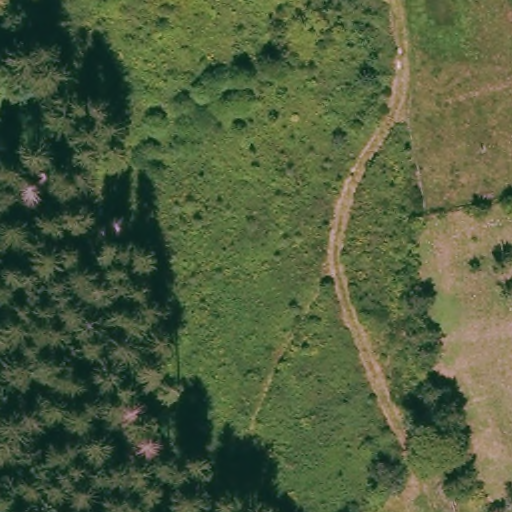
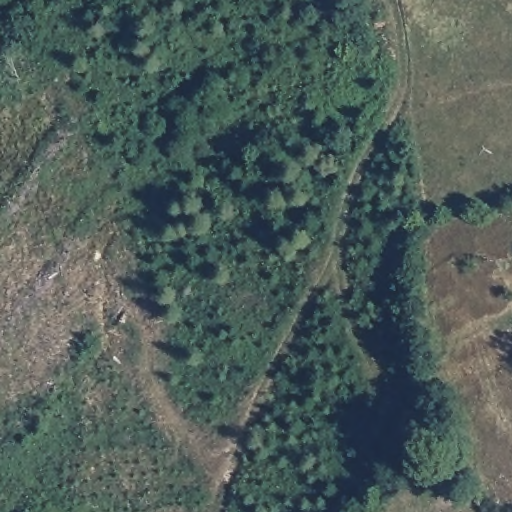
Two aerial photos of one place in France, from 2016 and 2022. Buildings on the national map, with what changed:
[]

